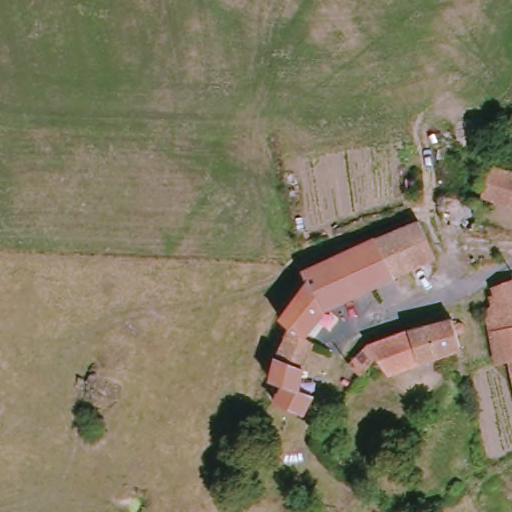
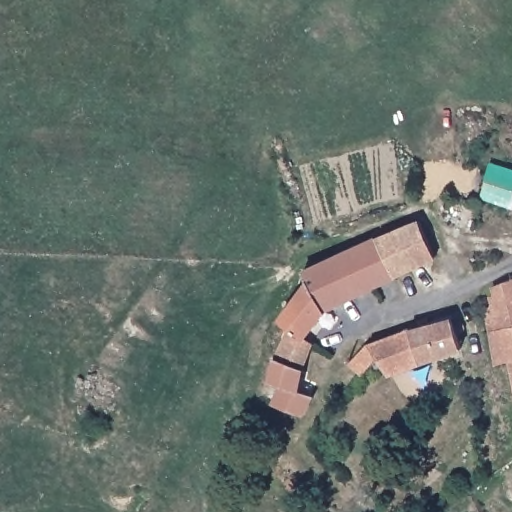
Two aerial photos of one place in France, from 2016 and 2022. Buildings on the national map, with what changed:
unchanged [(489,166),(512,173),(512,209),(477,199),(489,166)]
unchanged [(413,220),(430,255),(395,273),(375,235),(413,220)]
unchanged [(293,389),(305,396),(297,417),(266,404),(268,399),(263,396),(283,338),(278,335),(284,318),(276,309),(306,283),(305,278),(375,235),(395,273),(325,310),(306,338),(313,348),(293,389)]
unchanged [(500,326),(490,292),(493,292),(490,278),(512,271),(512,381),(511,373),(509,363),(499,364),(492,339),(489,332),(500,326)]
unchanged [(349,360),(366,346),(409,329),(450,317),(459,349),(384,377),(374,359),(360,372),(349,360)]

